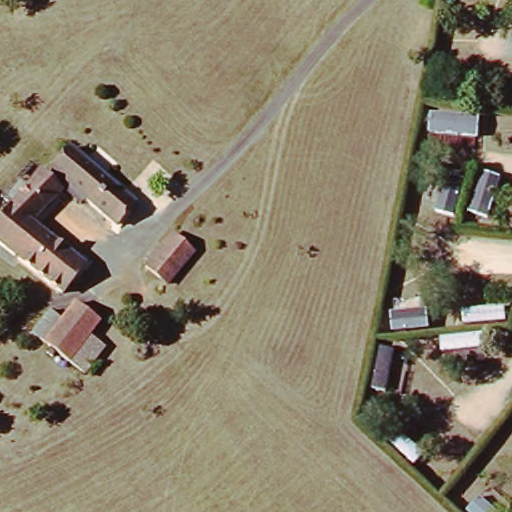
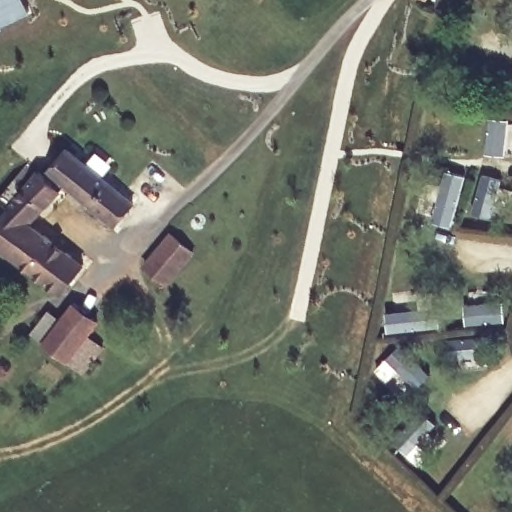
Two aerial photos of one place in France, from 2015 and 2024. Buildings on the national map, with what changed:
new [(30,15),(0,31),(0,0),(24,0),(30,15)]
unchanged [(478,141),(427,136),(430,115),(478,120),(478,141)]
unchanged [(31,167),(37,172),(61,144),(125,199),(107,220),(63,185),(31,225),(72,257),(51,285),(0,246),(0,207),(31,167)]
unchanged [(160,282),(141,266),(170,234),(190,250),(160,282)]
unchanged [(56,320),(70,303),(91,321),(81,332),(100,347),(81,371),(50,346),(45,351),(38,346),(43,340),(26,327),(41,308),(56,320)]
unchanged [(464,512),(478,498),(494,512),(464,512)]

